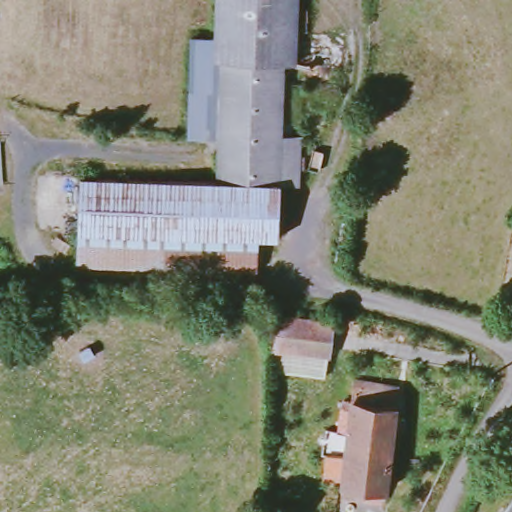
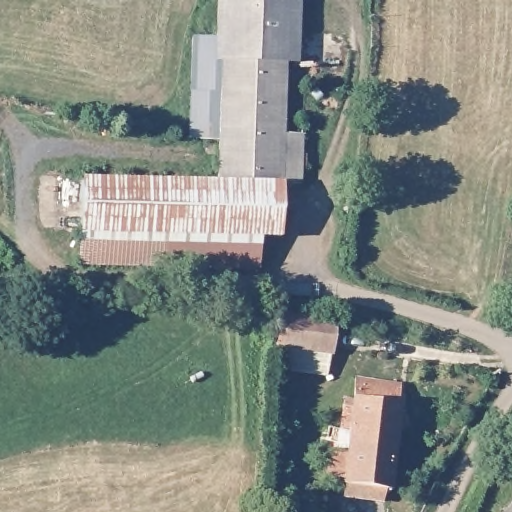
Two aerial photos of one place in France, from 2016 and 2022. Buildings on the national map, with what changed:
unchanged [(286,60),(284,135),(301,135),(300,185),(283,185),(281,240),(262,240),(261,270),(83,266),(84,180),(221,184),(222,140),(193,139),(195,40),(219,40),(220,0),(301,0),(299,60),(286,60)]
unchanged [(334,316),(331,355),(318,355),(316,365),(277,362),(280,311),(334,316)]
unchanged [(356,390),(401,396),(391,496),(342,492),(356,390)]
unchanged [(512,512),(508,512),(512,506),(512,512)]

